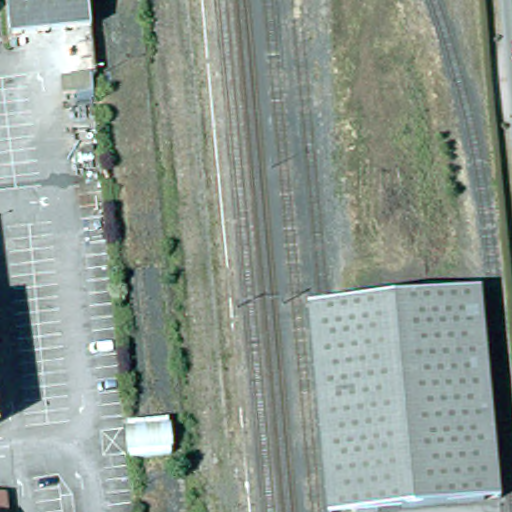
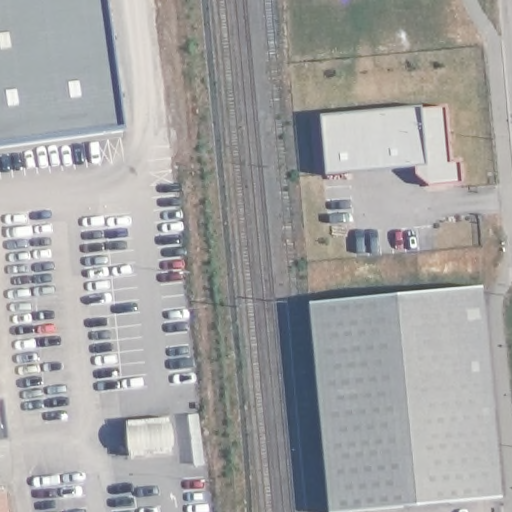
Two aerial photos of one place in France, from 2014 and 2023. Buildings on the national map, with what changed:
demolished [(4,28),(0,0),(50,0),(52,21),(4,28)]
new [(0,146),(0,0),(104,0),(121,129),(0,146)]
demolished [(87,0),(89,16),(52,21),(50,0),(87,0)]
new [(461,161),(463,182),(429,186),(417,174),(416,165),(327,172),(321,115),(421,106),(446,105),(450,161),(461,161)]
unchanged [(334,306),(487,290),(507,500),(350,512),(334,306)]
new [(172,453),(130,458),(126,421),(169,417),(172,453)]
unchanged [(2,512),(0,512),(0,497),(2,512)]

